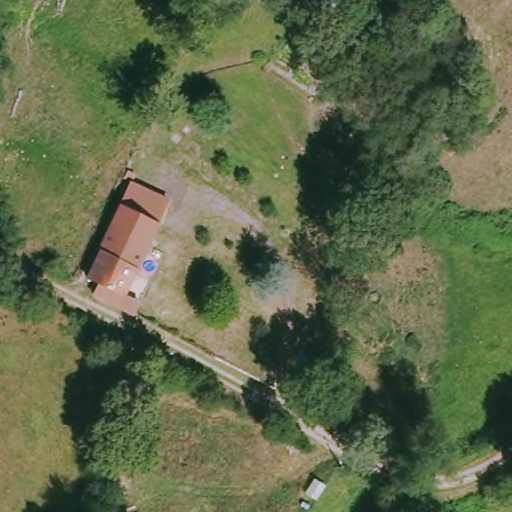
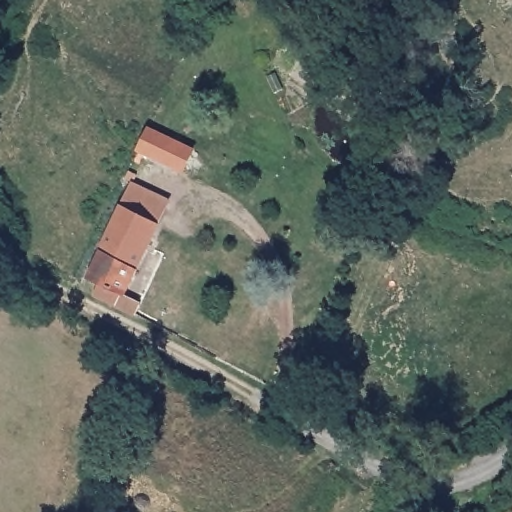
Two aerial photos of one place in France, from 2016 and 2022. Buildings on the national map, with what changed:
new [(137,152),(147,130),(192,151),(182,173),(137,152)]
unchanged [(132,185),(168,202),(157,225),(120,207),(132,185)]
unchanged [(93,296),(98,285),(87,279),(120,207),(157,225),(124,296),(118,308),(93,296)]

